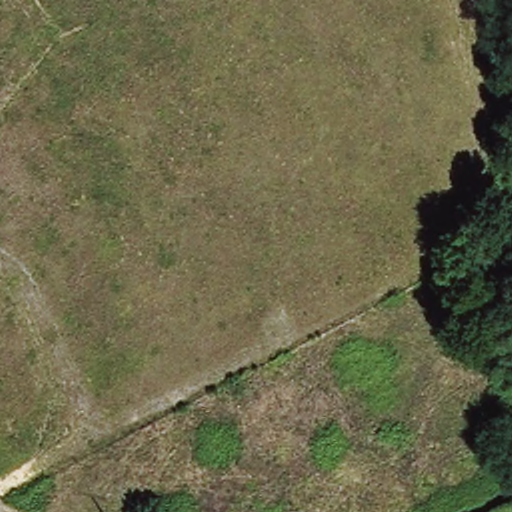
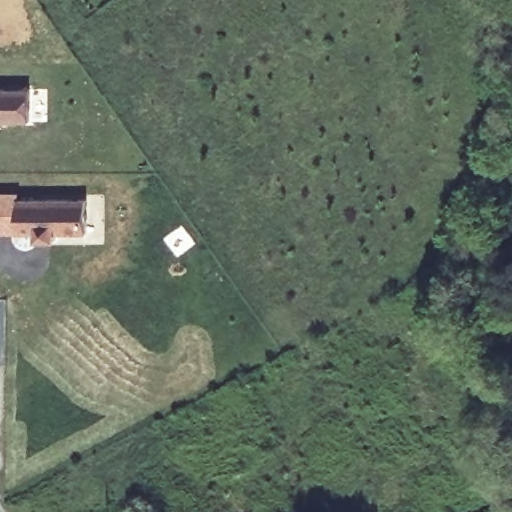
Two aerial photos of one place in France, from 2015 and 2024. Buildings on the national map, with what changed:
new [(0,122),(0,89),(30,89),(28,122),(0,122)]
new [(57,234),(57,241),(36,241),(35,233),(0,234),(0,192),(20,192),(20,200),(87,200),(87,234),(57,234)]

